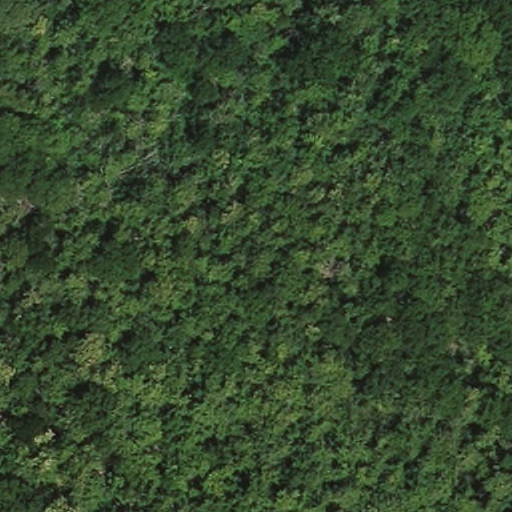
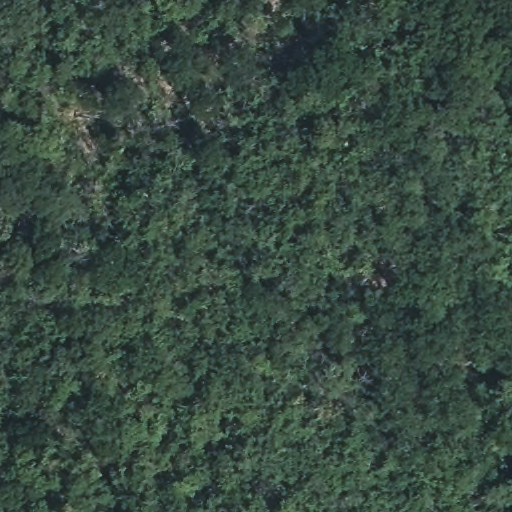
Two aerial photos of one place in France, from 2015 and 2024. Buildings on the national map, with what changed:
unchanged [(21,302),(28,314),(19,320),(13,307),(21,302)]

